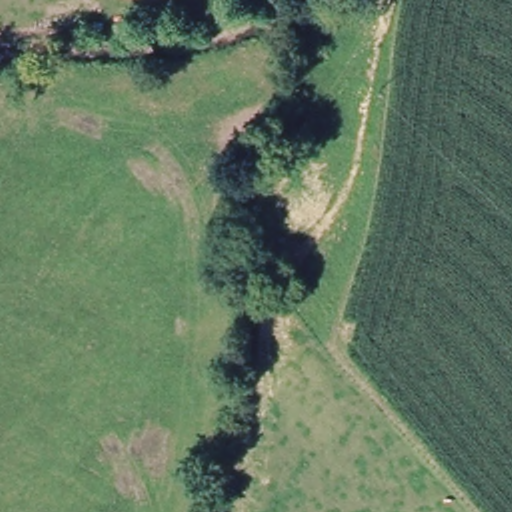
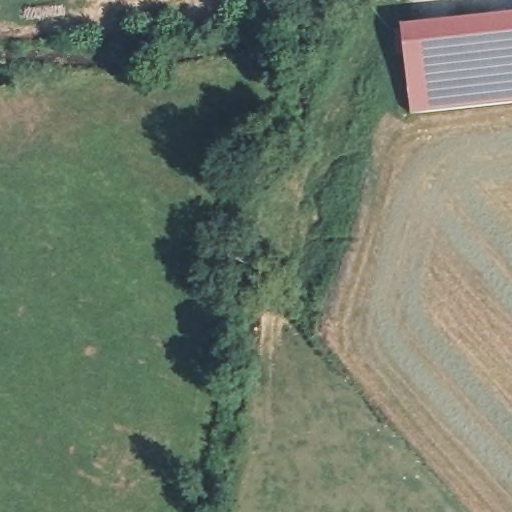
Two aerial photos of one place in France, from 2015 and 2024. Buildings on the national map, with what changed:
new [(512,17),(512,107),(413,118),(403,29),(512,17)]

